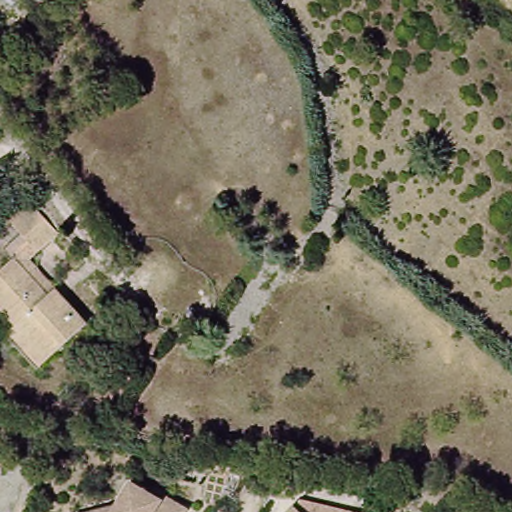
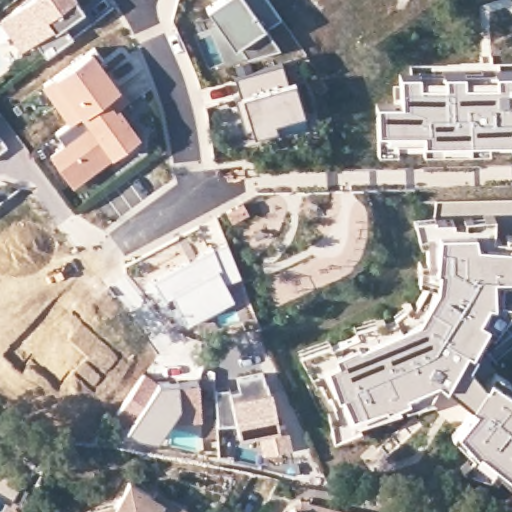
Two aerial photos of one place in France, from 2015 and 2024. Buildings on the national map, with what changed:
new [(25,50),(4,20),(32,0),(78,0),(82,5),(62,20),(75,38),(49,57),(37,41),(25,50)]
new [(221,0),(270,0),(283,18),(268,28),(282,48),(250,58),(240,44),(236,47),(218,19),(211,8),(221,0)]
new [(85,9),(65,24),(62,20),(82,5),(85,9)]
new [(228,58),(212,23),(218,19),(236,47),(240,44),(247,53),(228,58)]
new [(0,26),(5,23),(14,35),(0,45),(0,26)]
new [(46,84),(97,48),(105,59),(99,64),(118,90),(73,122),(46,84)]
new [(246,130),(237,98),(243,96),(236,77),(284,63),(290,81),(297,79),(307,113),(254,129),(246,130)]
new [(399,73),(512,71),(512,148),(378,152),(378,131),(375,105),(401,101),(399,73)]
new [(63,169),(53,155),(67,145),(59,133),(121,88),(131,100),(117,110),(126,123),(129,121),(140,136),(90,173),(74,184),(63,169)]
new [(117,110),(126,104),(135,116),(126,123),(117,110)]
new [(0,154),(0,135),(9,147),(0,154)]
new [(246,203),(251,212),(235,221),(230,212),(246,203)]
demolished [(13,225),(34,207),(59,234),(38,252),(31,245),(13,225)]
new [(435,216),(437,220),(495,214),(492,243),(502,243),(504,235),(512,234),(512,285),(504,285),(502,303),(512,303),(512,305),(469,365),(485,387),(491,377),(494,372),(512,384),(512,491),(494,472),(488,479),(460,468),(475,449),(457,430),(473,407),(442,382),(437,377),(429,399),(354,420),(356,426),(333,436),(328,412),(335,413),(316,376),(311,379),(298,354),(331,343),(336,350),(358,340),(352,328),(382,319),(385,327),(395,321),(393,314),(407,301),(413,306),(425,284),(418,281),(417,262),(426,261),(425,244),(419,244),(413,219),(435,216)]
new [(229,282),(235,296),(188,321),(174,295),(167,299),(158,279),(231,243),(246,274),(229,282)]
demolished [(65,299),(90,325),(50,361),(18,326),(0,306),(0,273),(15,259),(57,307),(65,299)]
new [(290,446),(259,451),(256,432),(237,434),(234,422),(217,423),(215,390),(238,387),(236,377),(262,371),(272,397),(279,429),(287,428),(290,446)]
new [(170,423),(182,406),(159,438),(138,434),(129,428),(133,422),(120,413),(146,374),(160,384),(161,382),(181,381),(181,383),(201,382),(202,404),(201,420),(170,423)]
new [(11,504),(0,497),(0,455),(27,478),(11,504)]
unchanged [(87,511),(114,504),(127,482),(149,495),(152,490),(182,508),(179,512),(82,512),(87,511)]
unchanged [(293,508),(298,502),(308,504),(343,512),(288,512),(293,508)]

